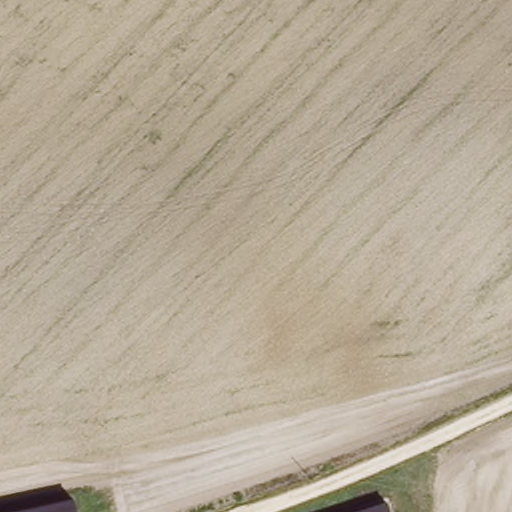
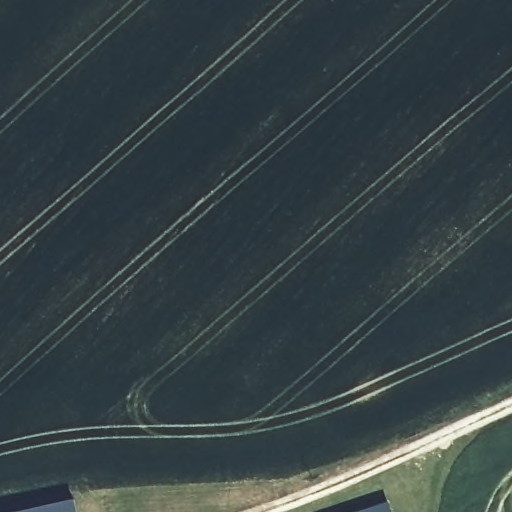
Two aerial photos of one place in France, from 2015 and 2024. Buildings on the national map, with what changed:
unchanged [(72,499),(75,512),(16,512),(72,499)]
unchanged [(389,500),(394,512),(352,512),(389,500)]

